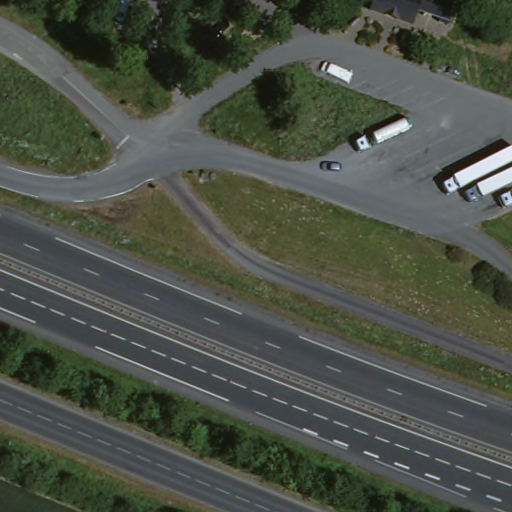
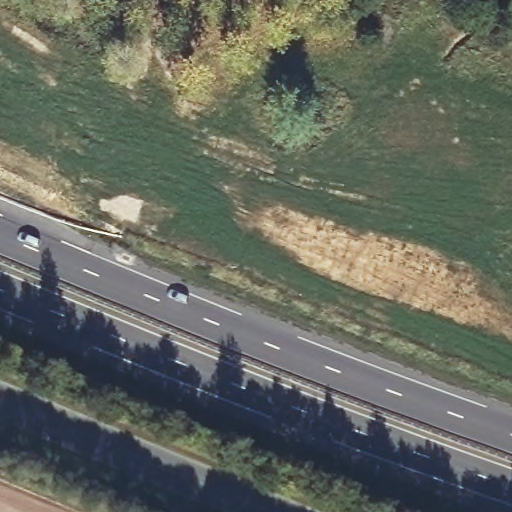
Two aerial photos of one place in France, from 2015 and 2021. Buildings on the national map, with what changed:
unchanged [(421,11),(417,27),(372,11),(376,0),(457,0),(450,20),(421,11)]

